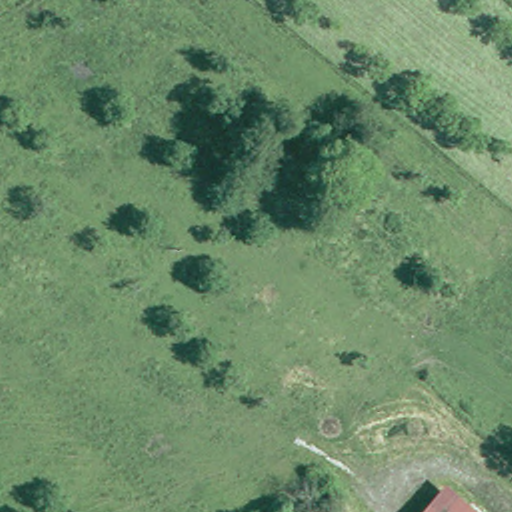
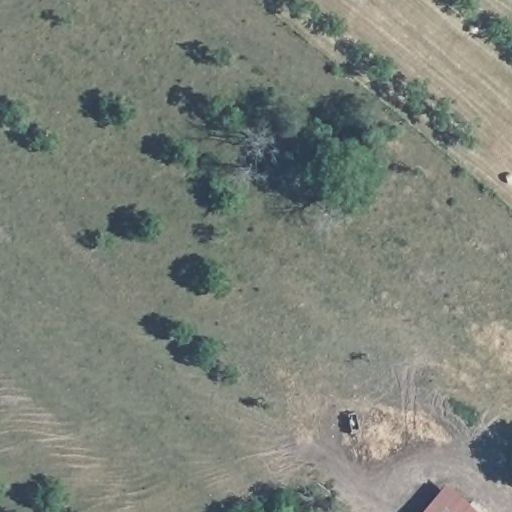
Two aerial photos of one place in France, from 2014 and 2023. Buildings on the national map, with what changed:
unchanged [(477,512),(426,512),(448,487),(477,512)]

